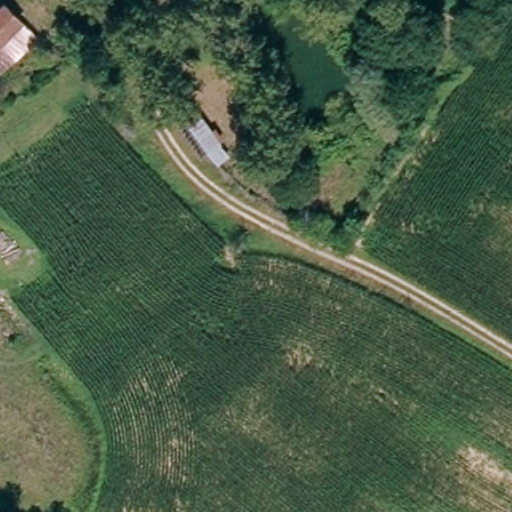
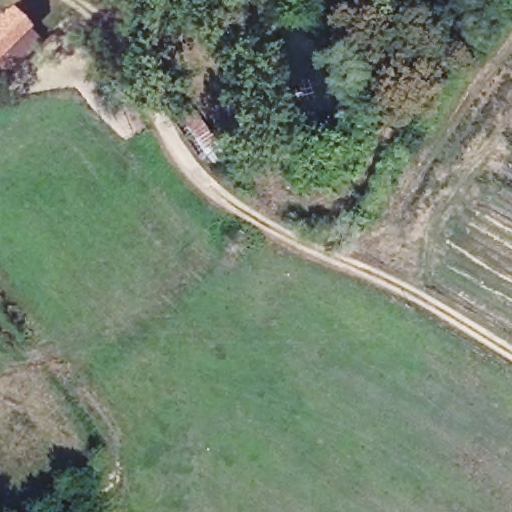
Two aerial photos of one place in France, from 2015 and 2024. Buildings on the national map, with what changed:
unchanged [(0,11),(6,5),(25,22),(0,48),(0,11)]
unchanged [(0,48),(25,22),(47,46),(0,81),(0,48)]
unchanged [(205,164),(172,119),(194,102),(229,144),(205,164)]

